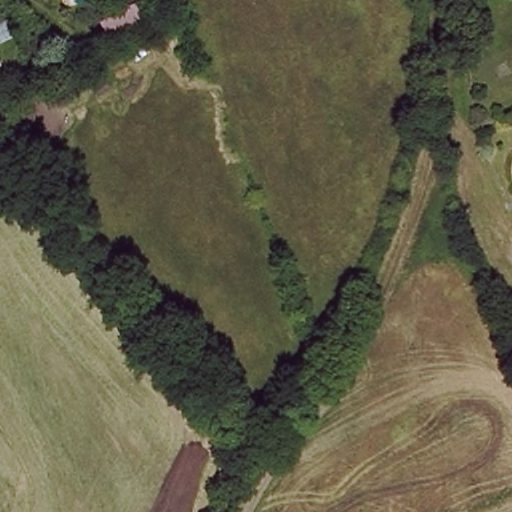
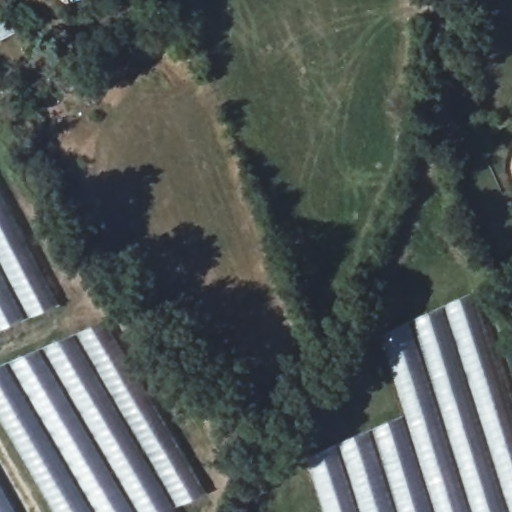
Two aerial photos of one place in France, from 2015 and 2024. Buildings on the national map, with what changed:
new [(0,337),(0,199),(58,306),(0,337)]
new [(382,335),(471,294),(512,420),(512,512),(321,512),(305,459),(405,415),(382,335)]
new [(206,493),(176,508),(178,512),(53,512),(0,420),(0,366),(108,319),(206,493)]
new [(0,512),(0,486),(14,512),(0,512)]

